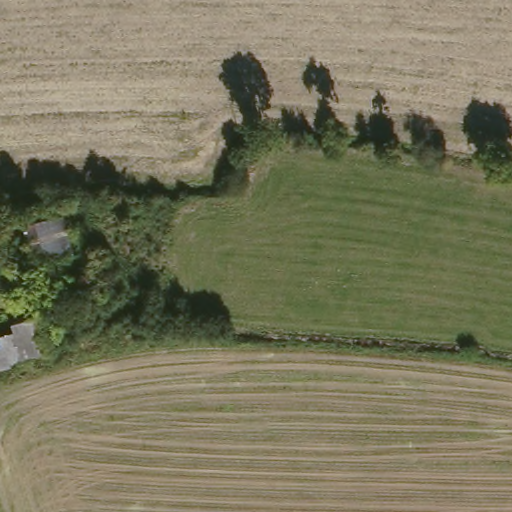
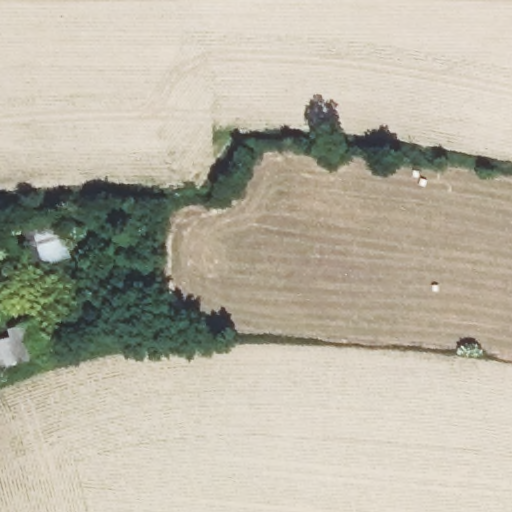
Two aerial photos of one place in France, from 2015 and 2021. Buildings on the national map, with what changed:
unchanged [(67,219),(74,253),(40,260),(33,225),(67,219)]
unchanged [(30,311),(42,345),(5,358),(6,361),(0,363),(0,322),(30,311)]

